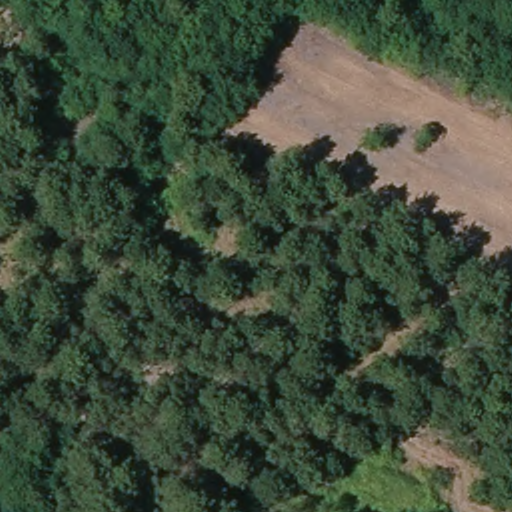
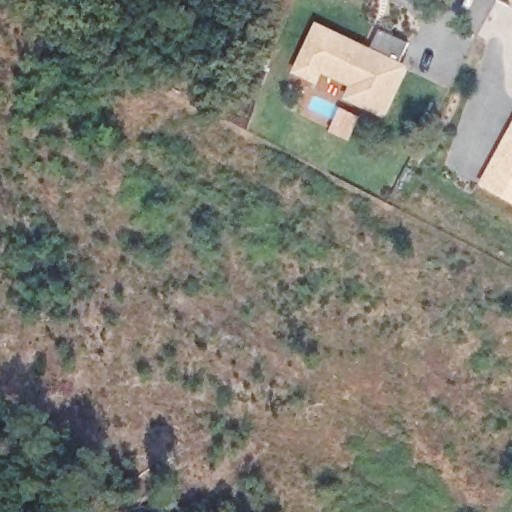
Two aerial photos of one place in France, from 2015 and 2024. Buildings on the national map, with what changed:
new [(384,118),(345,100),(350,88),(323,75),(317,86),(293,74),(317,22),(371,49),(380,30),(409,44),(400,64),(408,66),(384,118)]
new [(512,203),(478,183),(512,122),(512,203)]

